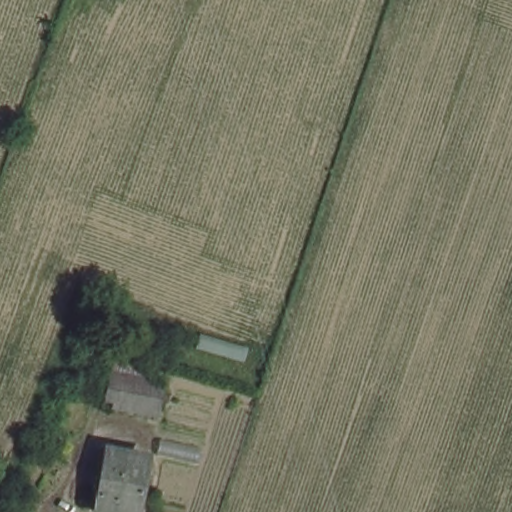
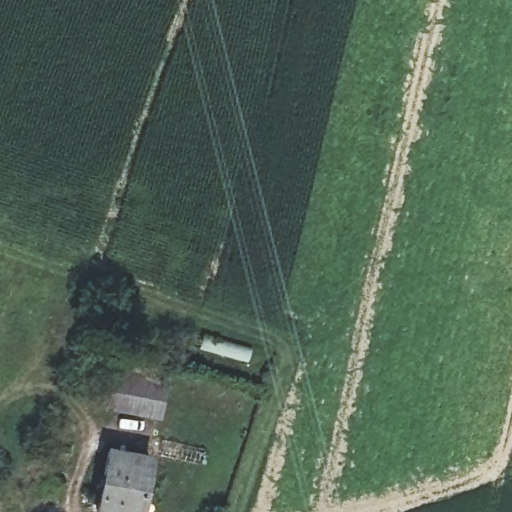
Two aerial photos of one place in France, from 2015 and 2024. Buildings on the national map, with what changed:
unchanged [(155,403),(112,396),(117,362),(160,369),(155,403)]
unchanged [(142,512),(116,512),(100,509),(110,447),(152,455),(142,512)]

